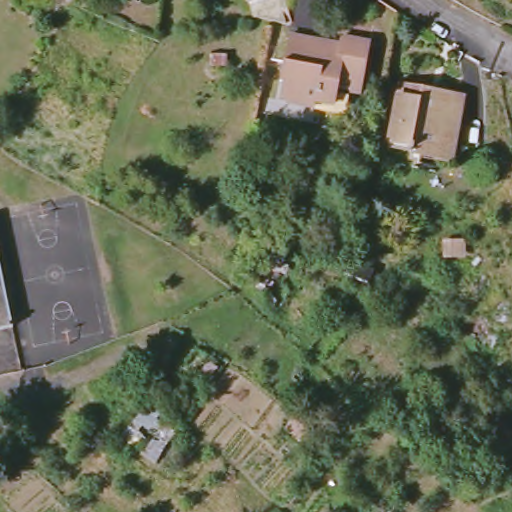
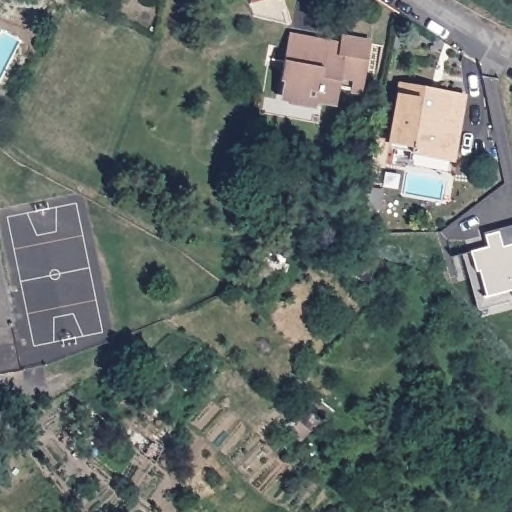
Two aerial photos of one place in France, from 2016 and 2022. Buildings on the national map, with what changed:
unchanged [(249,0),(260,0),(249,3),(249,0)]
unchanged [(336,104),(316,100),(315,107),(287,102),(281,92),(283,80),(291,81),(294,63),(284,61),(289,34),(328,41),(327,43),(341,46),(341,37),(365,41),(371,42),(362,91),(356,90),(339,87),(336,104)]
unchanged [(398,96),(399,85),(438,91),(463,95),(459,118),(449,116),(443,152),(390,143),(398,96)]
new [(463,255),(468,251),(486,246),(483,233),(512,225),(512,306),(509,306),(508,301),(478,310),(463,255)]
unchanged [(0,328),(0,264),(13,325),(0,328)]

